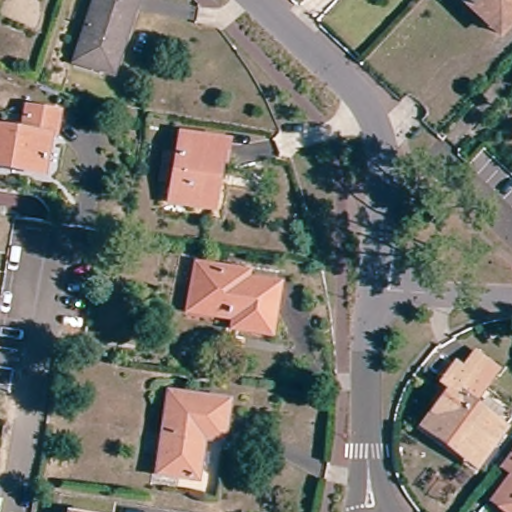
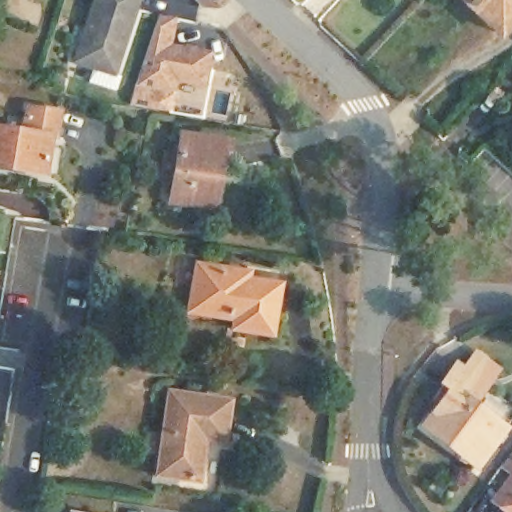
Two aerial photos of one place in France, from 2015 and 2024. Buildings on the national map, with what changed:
unchanged [(67,53),(88,0),(139,0),(135,10),(123,44),(115,70),(105,66),(67,53)]
unchanged [(459,0),(482,0),(499,16),(512,3),(512,19),(496,35),(459,0)]
unchanged [(482,0),(512,0),(512,3),(499,16),(482,0)]
new [(156,14),(178,19),(172,40),(216,50),(203,119),(128,104),(156,14)]
unchanged [(0,136),(24,140),(28,115),(55,119),(52,144),(47,144),(42,177),(0,171),(0,136)]
unchanged [(224,175),(219,174),(212,211),(173,204),(177,182),(165,180),(170,150),(183,153),(185,140),(229,149),(224,175)]
unchanged [(228,323),(229,314),(190,305),(197,264),(244,272),(242,281),(269,286),(260,330),(228,323)]
unchanged [(442,446),(416,425),(446,385),(439,380),(451,365),(461,352),(490,375),(480,388),(470,400),(505,428),(479,462),(473,471),(442,446)]
unchanged [(197,435),(193,466),(153,461),(164,391),(223,397),(217,436),(197,435)]
unchanged [(506,474),(512,467),(512,477),(506,474)]
unchanged [(504,507),(512,497),(512,512),(510,512),(504,507)]
unchanged [(60,511),(63,512),(60,512),(60,511)]

